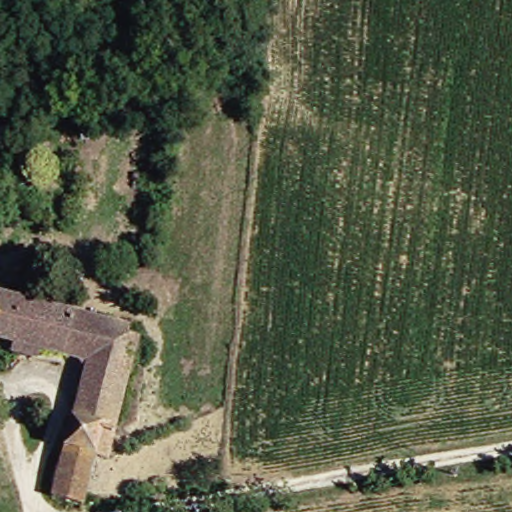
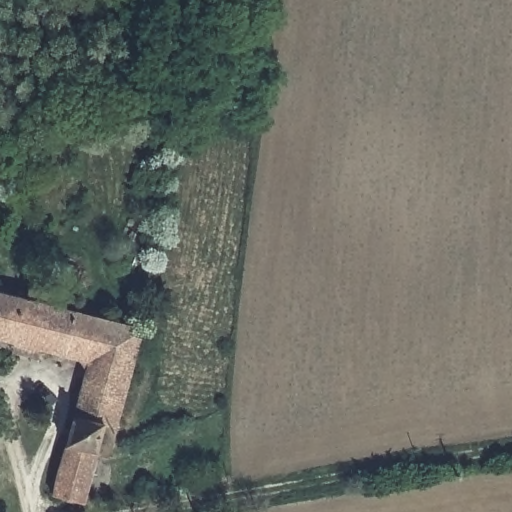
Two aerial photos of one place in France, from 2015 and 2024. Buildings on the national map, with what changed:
unchanged [(144,336),(120,426),(109,423),(89,504),(57,495),(92,362),(0,337),(0,292),(146,329),(144,336)]

